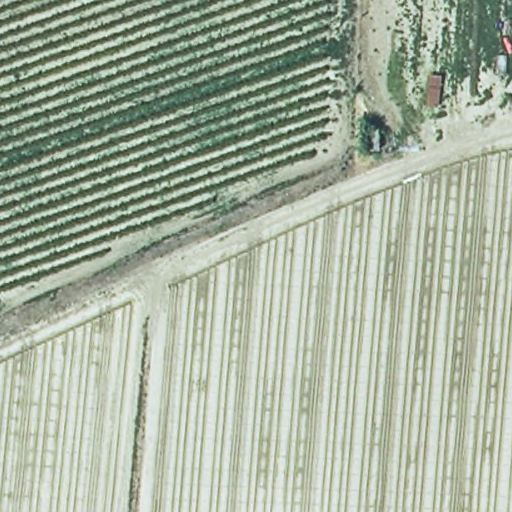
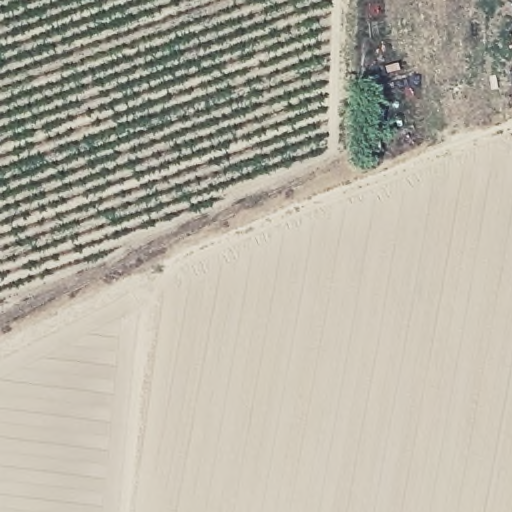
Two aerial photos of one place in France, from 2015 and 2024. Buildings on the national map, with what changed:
[]

